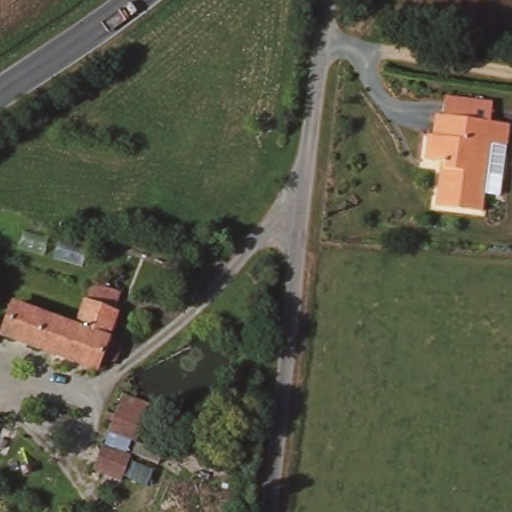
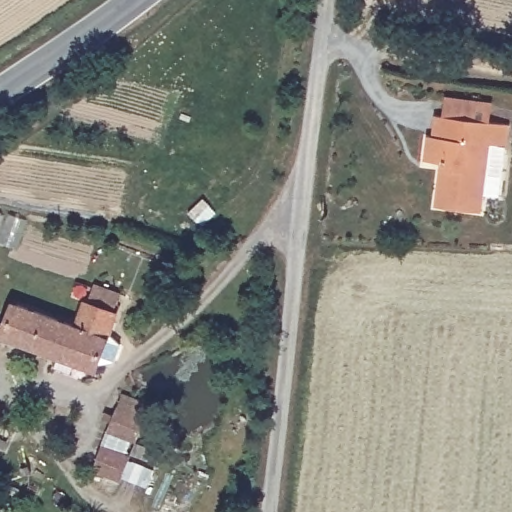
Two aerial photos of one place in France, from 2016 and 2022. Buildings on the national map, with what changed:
unchanged [(503,155),(485,149),(471,216),(423,205),(433,159),(424,157),(430,131),(439,114),(446,115),(452,96),(495,108),(491,125),(508,130),(503,155)]
unchanged [(115,349),(110,366),(94,368),(91,374),(0,341),(0,338),(10,309),(71,331),(80,306),(82,307),(90,288),(115,298),(109,316),(111,317),(105,340),(115,349)]
unchanged [(136,443),(107,432),(122,393),(151,405),(136,443)]
unchanged [(121,480),(93,470),(102,445),(130,455),(121,480)]

